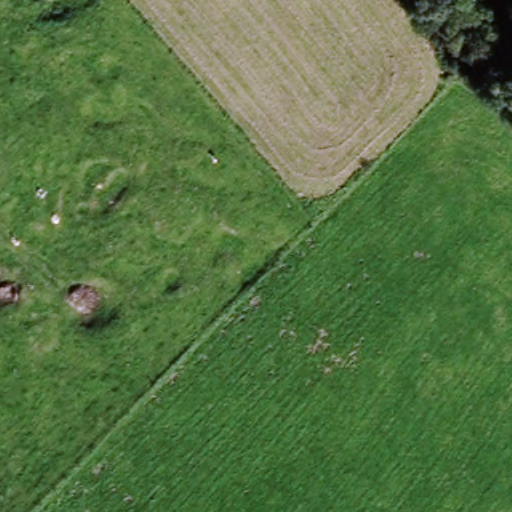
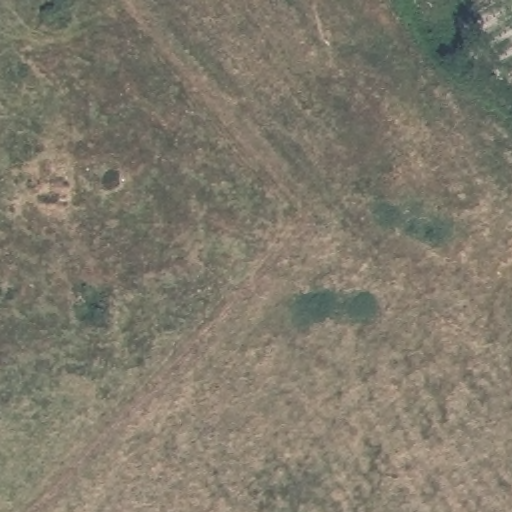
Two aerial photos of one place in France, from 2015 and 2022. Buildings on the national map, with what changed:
[]

